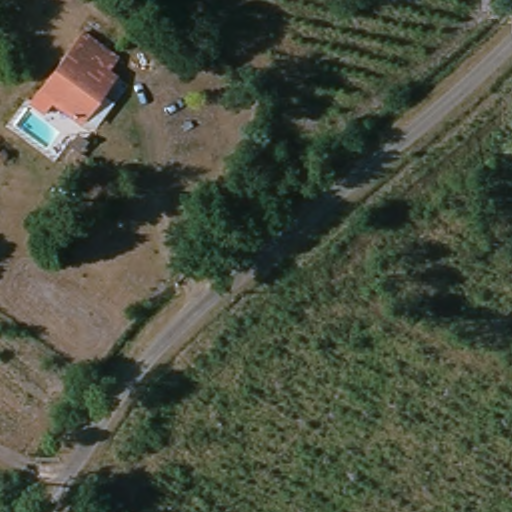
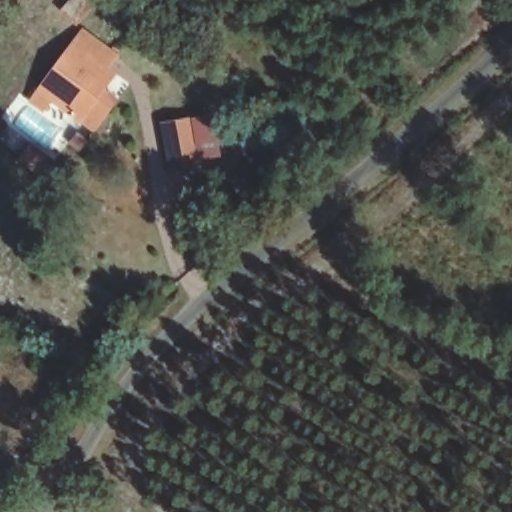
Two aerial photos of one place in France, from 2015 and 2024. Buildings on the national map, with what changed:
unchanged [(110,69),(117,75),(104,92),(81,122),(39,90),(85,32),(118,58),(110,69)]
new [(200,165),(170,171),(161,124),(214,114),(222,156),(199,160),(200,165)]

